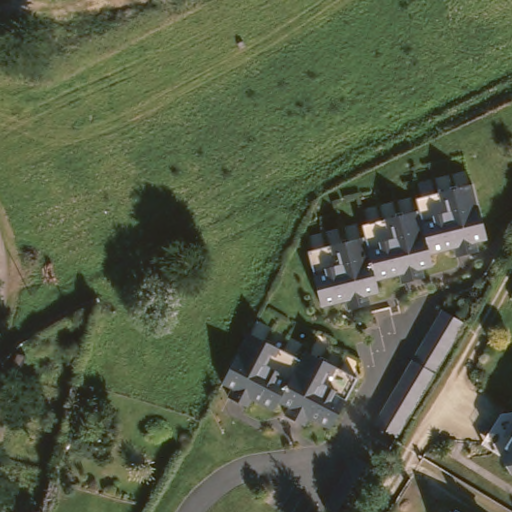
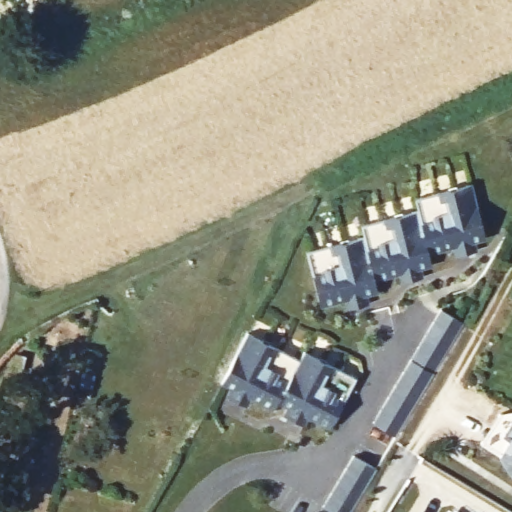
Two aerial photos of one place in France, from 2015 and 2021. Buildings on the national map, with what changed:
unchanged [(345,302),(322,310),(310,275),(325,270),(323,267),(340,262),(334,245),(360,237),(362,245),(377,240),(376,237),(392,232),(386,215),(412,206),(415,214),(427,210),(427,207),(442,202),(437,185),(465,176),(483,230),(471,234),(473,240),(462,244),(452,247),(451,241),(427,249),(431,260),(418,265),(421,271),(410,274),(401,277),(398,271),(375,278),(379,291),(365,296),(367,302),(356,305),(347,308),(345,302)]
unchanged [(465,322),(461,328),(435,372),(397,437),(375,424),(443,310),(465,322)]
unchanged [(296,424),(285,418),(288,412),(277,406),(275,410),(254,397),(250,403),(242,398),(232,392),(235,387),(224,380),(226,377),(253,331),(277,345),(268,361),(283,370),(282,372),(293,378),(306,357),(331,371),(322,387),(336,395),(335,397),(347,405),(328,436),(307,423),(303,429),(296,424)]
unchanged [(508,473),(487,462),(492,456),(476,446),(486,430),(477,424),(488,402),(506,398),(512,402),(512,467),(508,473)]
unchanged [(352,512),(332,512),(325,507),(356,456),(378,469),(352,512)]

